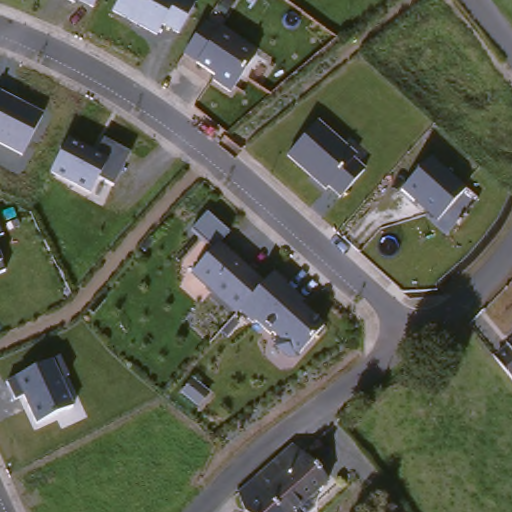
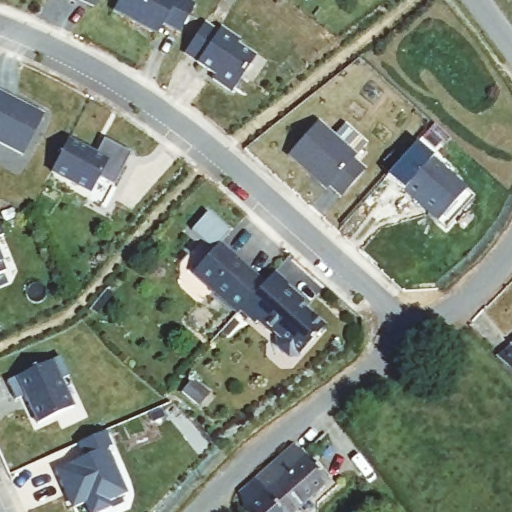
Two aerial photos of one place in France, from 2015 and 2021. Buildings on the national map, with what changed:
unchanged [(62,0),(85,0),(82,10),(62,0)]
unchanged [(157,35),(113,11),(119,0),(186,0),(195,5),(180,34),(162,26),(157,35)]
unchanged [(210,81),(215,76),(184,54),(207,21),(257,56),(230,93),(210,81)]
unchanged [(22,155),(0,143),(0,94),(42,115),(22,155)]
unchanged [(328,187),(325,191),(285,157),(319,121),(357,156),(354,160),(365,171),(340,199),(328,187)]
unchanged [(94,152),(103,140),(127,154),(111,185),(98,177),(88,194),(47,171),(63,137),(94,152)]
unchanged [(463,190),(435,220),(402,192),(428,159),(463,190)]
unchanged [(230,230),(223,243),(267,278),(276,269),(330,326),(298,360),(239,308),(233,312),(191,271),(209,249),(189,231),(204,212),(230,230)]
unchanged [(0,240),(0,229),(4,239),(0,240)]
unchanged [(1,263),(5,273),(0,275),(0,252),(4,262),(1,263)]
unchanged [(512,345),(512,384),(491,360),(512,345)]
unchanged [(23,398),(15,402),(7,381),(60,358),(69,379),(62,382),(74,408),(36,425),(23,398)]
new [(75,445),(104,432),(111,448),(107,450),(126,495),(107,502),(110,508),(100,512),(88,512),(84,504),(71,509),(54,468),(81,457),(75,445)]
unchanged [(326,487),(299,512),(275,512),(255,490),(294,452),(302,459),(326,487)]
unchanged [(255,490),(275,512),(242,512),(237,507),(255,490)]

